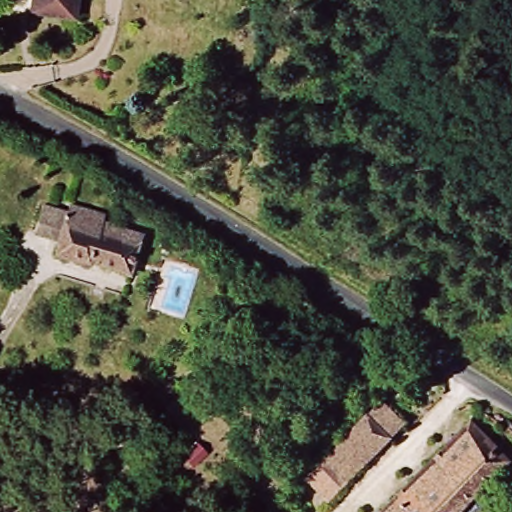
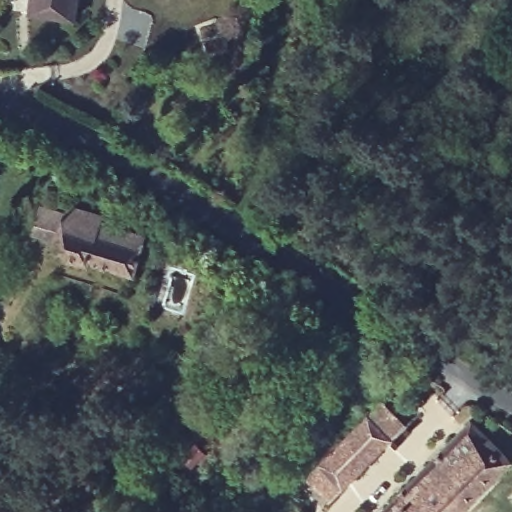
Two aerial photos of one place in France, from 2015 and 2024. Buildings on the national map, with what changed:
unchanged [(28,24),(32,0),(81,0),(76,31),(28,24)]
unchanged [(120,277),(107,273),(51,259),(59,242),(34,234),(43,205),(69,216),(71,209),(108,219),(108,231),(142,244),(145,245),(131,281),(120,277)]
unchanged [(380,404),(408,431),(395,445),(334,505),(307,482),(366,419),(380,404)]
unchanged [(472,431),(511,467),(466,512),(392,512),(472,431)]

